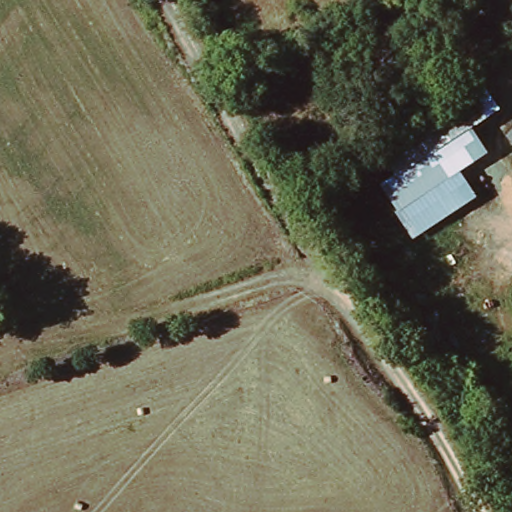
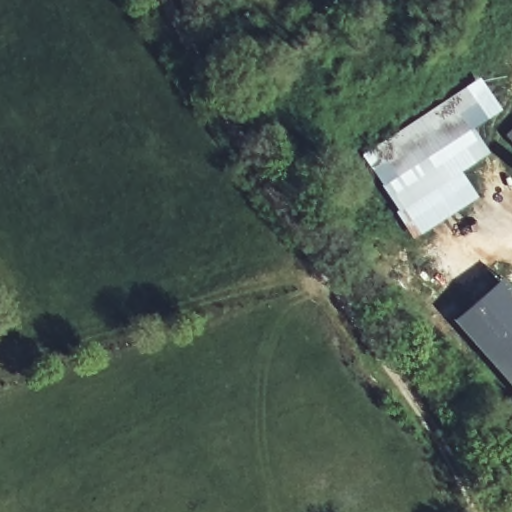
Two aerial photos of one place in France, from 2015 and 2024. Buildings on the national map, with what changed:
unchanged [(492,105),(465,123),(479,143),(456,159),(394,198),(366,154),(478,83),(492,105)]
unchanged [(512,132),(512,143),(506,137),(512,132)]
unchanged [(456,159),(462,169),(458,171),(476,196),(417,234),(394,198),(456,159)]
new [(512,286),(512,387),(455,318),(505,277),(512,286)]

